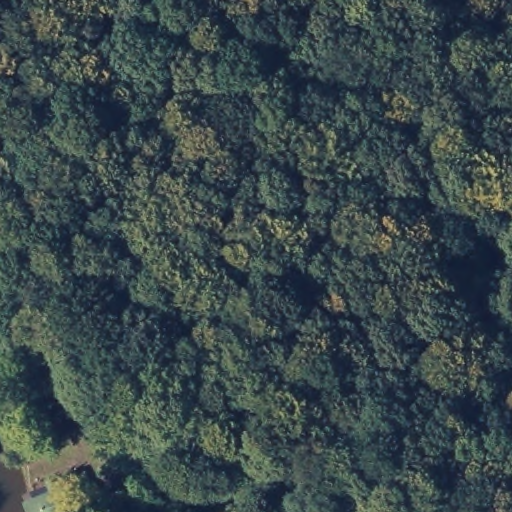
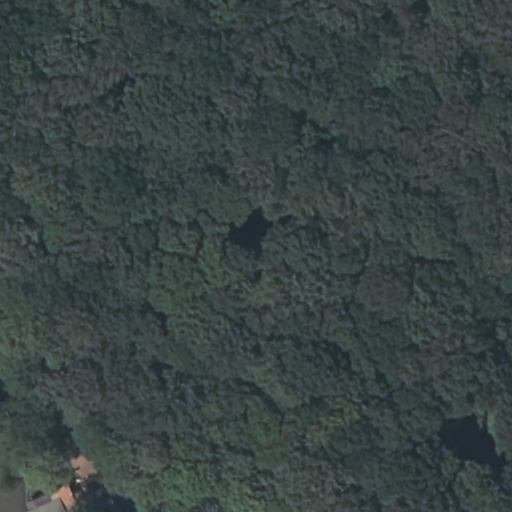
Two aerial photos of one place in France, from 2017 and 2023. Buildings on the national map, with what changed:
unchanged [(63,512),(28,512),(26,508),(56,495),(63,512)]

